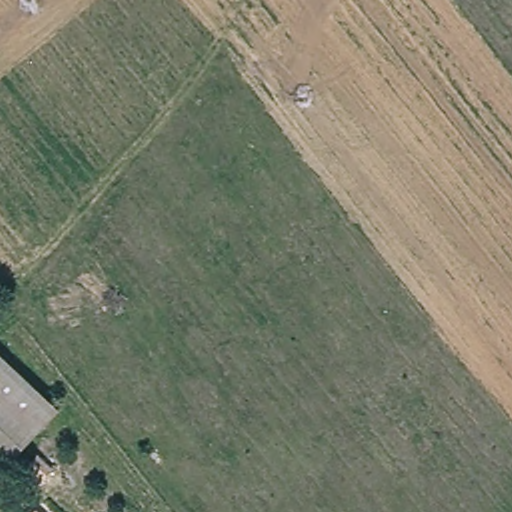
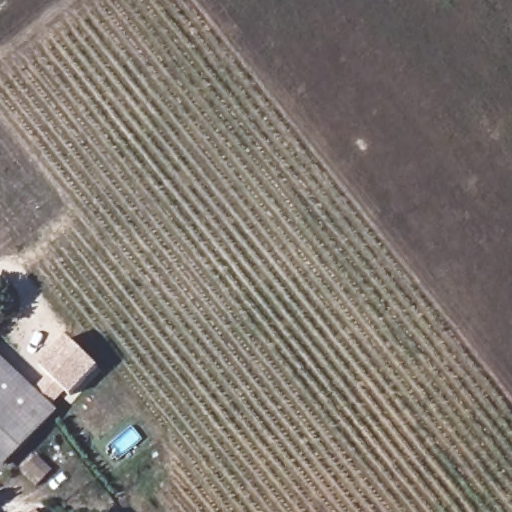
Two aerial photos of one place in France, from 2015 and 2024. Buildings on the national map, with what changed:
new [(66,339),(98,369),(71,397),(40,368),(66,339)]
unchanged [(54,418),(5,468),(0,464),(0,366),(54,418)]
unchanged [(33,461),(48,476),(40,485),(25,470),(33,461)]

